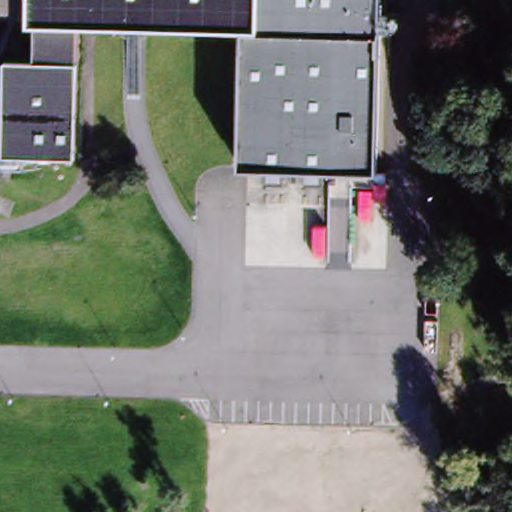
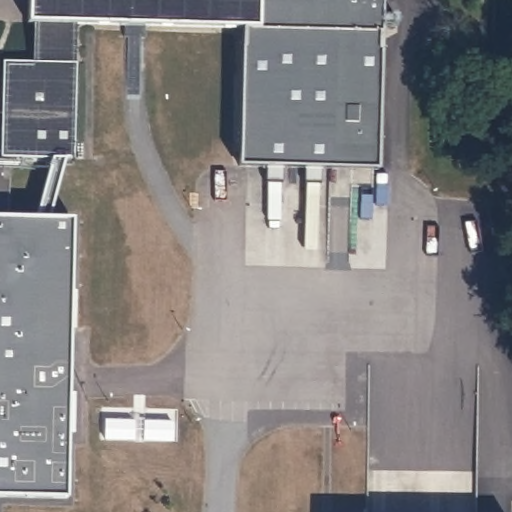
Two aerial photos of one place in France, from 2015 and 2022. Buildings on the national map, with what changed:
unchanged [(252,37),(165,35),(105,34),(70,32),(68,125),(11,136),(0,73),(0,67),(29,68),(32,31),(21,32),(22,0),(253,0),(252,34),(252,37)]
unchanged [(253,0),(384,0),(380,174),(245,170),(252,37),(253,0)]
unchanged [(67,164),(0,164),(0,73),(11,136),(68,125),(67,164)]
new [(75,219),(68,498),(0,496),(0,217),(75,219)]

